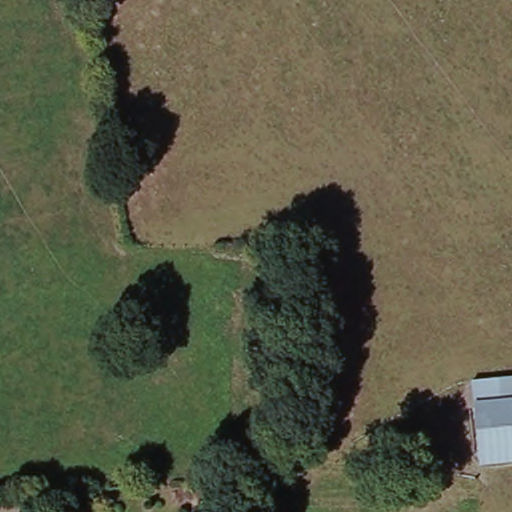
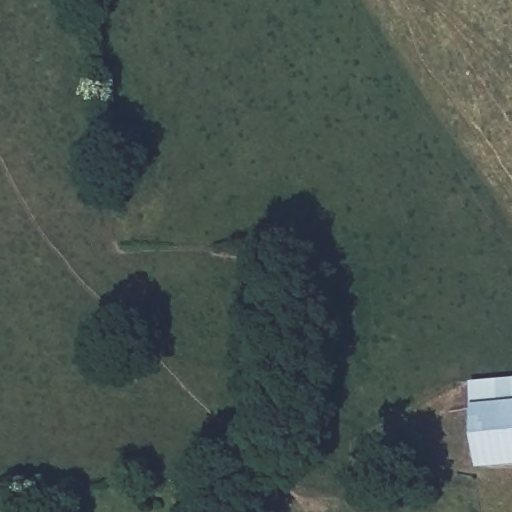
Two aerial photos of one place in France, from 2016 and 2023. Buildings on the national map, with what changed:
unchanged [(475,384),(512,382),(512,411),(476,412),(475,384)]
unchanged [(512,411),(512,463),(478,464),(476,412),(512,411)]

